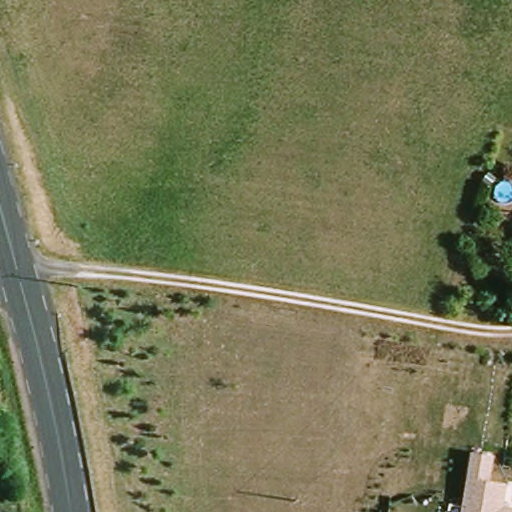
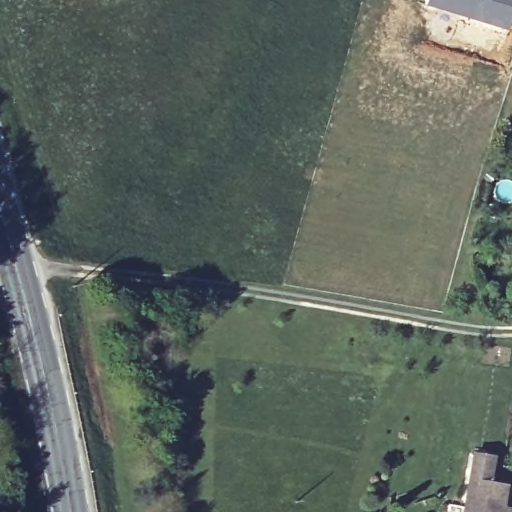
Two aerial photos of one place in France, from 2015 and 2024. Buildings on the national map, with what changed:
new [(512,18),(508,30),(424,5),(425,0),(512,0),(512,18)]
unchanged [(493,482),(510,485),(506,507),(512,508),(512,512),(463,512),(472,453),(496,456),(493,482)]

